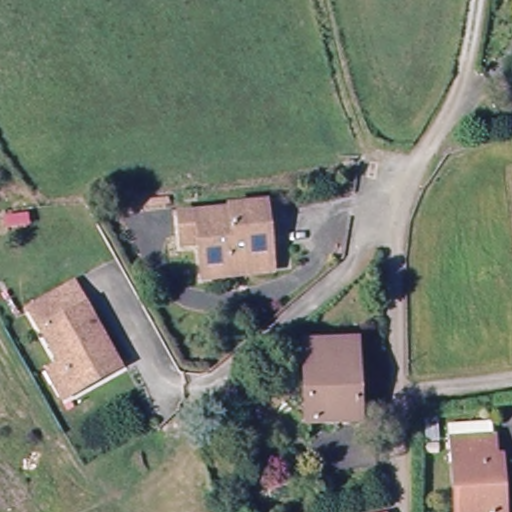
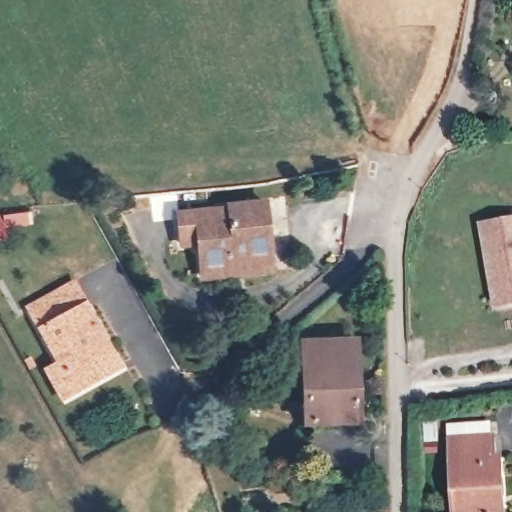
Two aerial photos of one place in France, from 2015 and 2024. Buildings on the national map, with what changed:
unchanged [(204,272),(202,235),(185,236),(184,209),(231,207),(231,204),(268,202),(271,255),(272,269),(223,271),(204,272)]
new [(512,307),(495,310),(479,222),(512,217),(512,307)]
unchanged [(61,357),(33,305),(78,281),(121,363),(77,386),(62,393),(46,365),(61,357)]
unchanged [(358,336),(360,390),(363,390),(364,414),(359,414),(359,417),(306,419),(305,339),(349,337),(358,336)]
unchanged [(505,512),(459,512),(454,470),(449,470),(447,448),(446,438),(491,431),(492,442),(495,461),(498,460),(505,512)]

